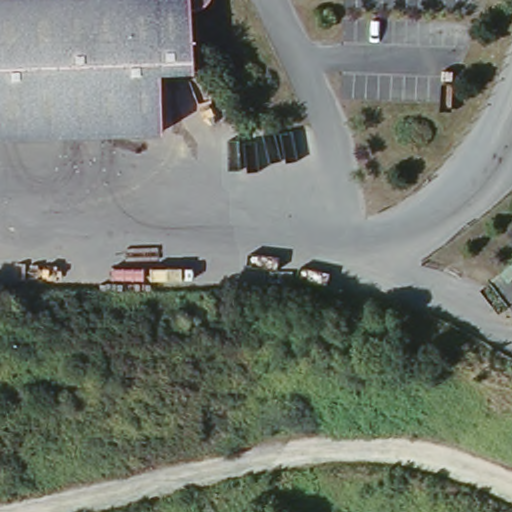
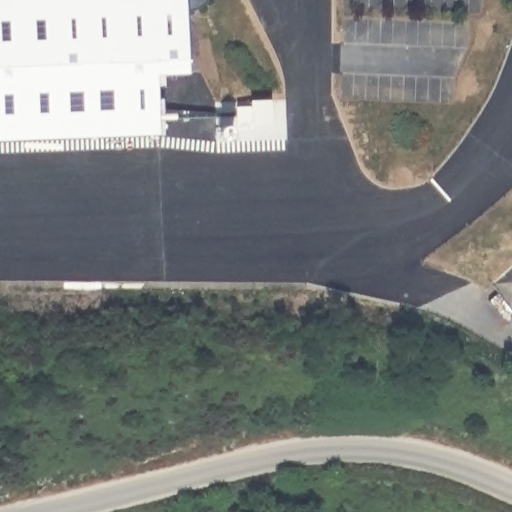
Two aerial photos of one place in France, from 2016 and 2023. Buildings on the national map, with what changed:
unchanged [(205,0),(200,4),(183,13),(180,74),(154,72),(157,131),(0,138),(0,0),(205,0)]

